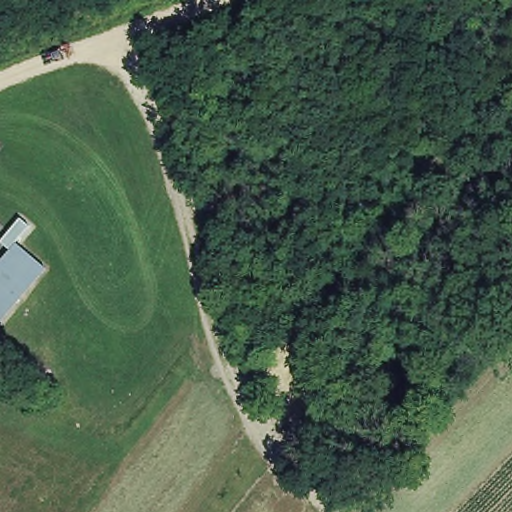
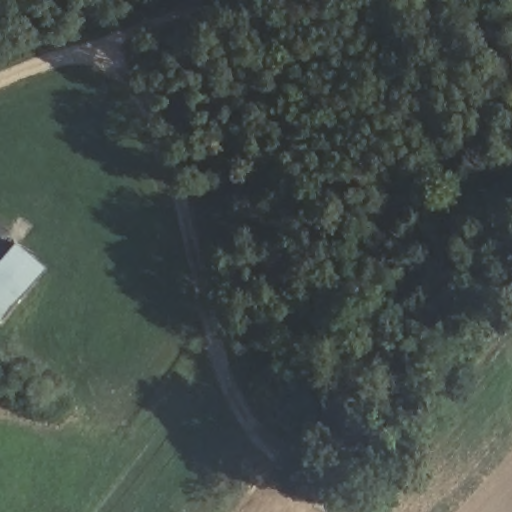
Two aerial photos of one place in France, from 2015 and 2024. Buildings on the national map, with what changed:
unchanged [(48,262),(4,313),(0,310),(0,259),(19,237),(48,262)]

